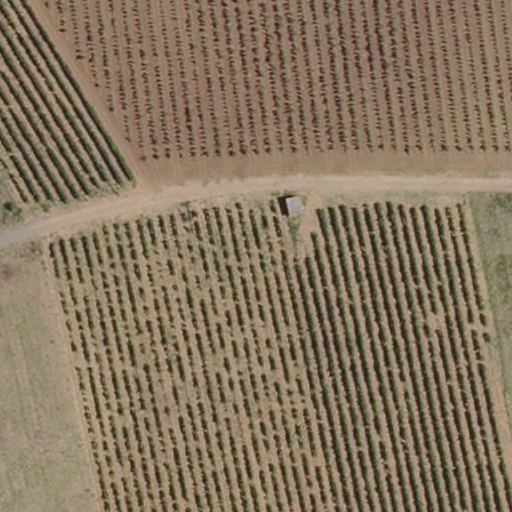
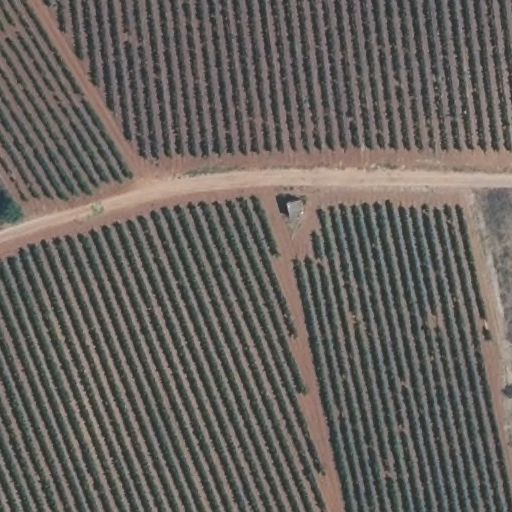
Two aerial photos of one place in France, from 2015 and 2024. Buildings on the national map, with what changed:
unchanged [(305,214),(287,218),(284,202),(302,199),(305,214)]

